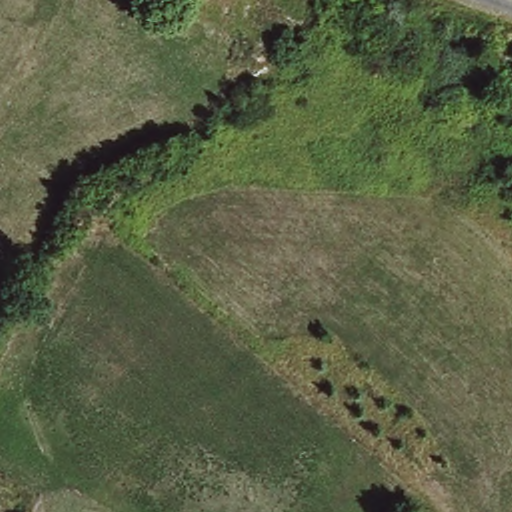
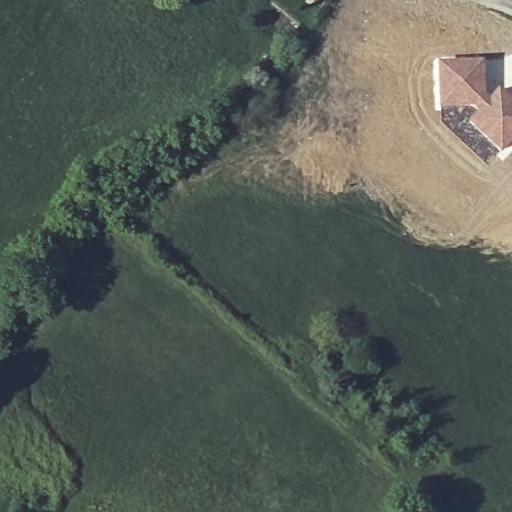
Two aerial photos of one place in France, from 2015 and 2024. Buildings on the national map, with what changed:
new [(485,59),(486,92),(490,91),(490,92),(498,85),(512,97),(512,140),(500,152),(466,119),(473,112),(467,108),(438,108),(437,60),(485,59)]

